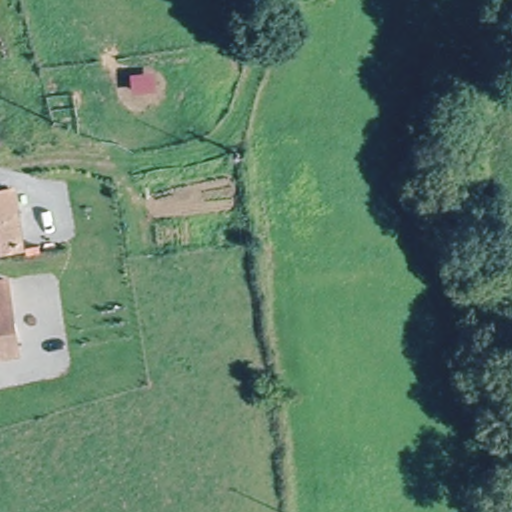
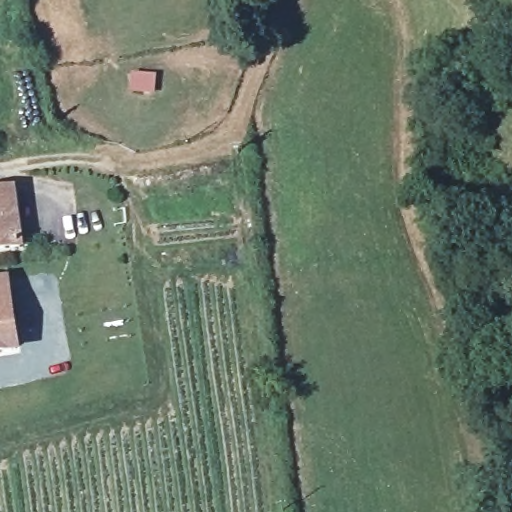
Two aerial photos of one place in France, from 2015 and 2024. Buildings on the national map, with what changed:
unchanged [(14,209),(20,254),(6,255),(0,256),(0,200),(12,198),(14,209)]
unchanged [(0,358),(0,288),(5,287),(7,298),(14,356),(11,356),(0,358)]

